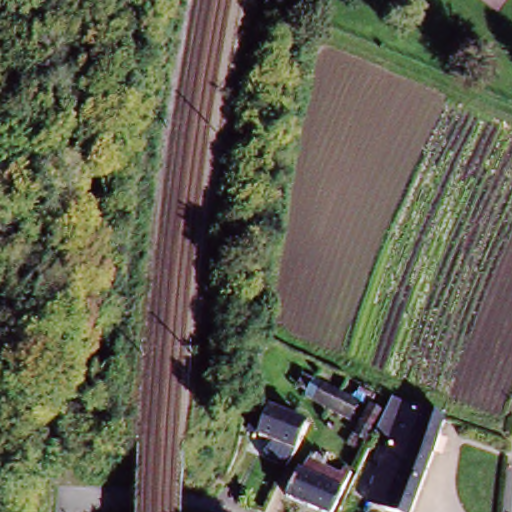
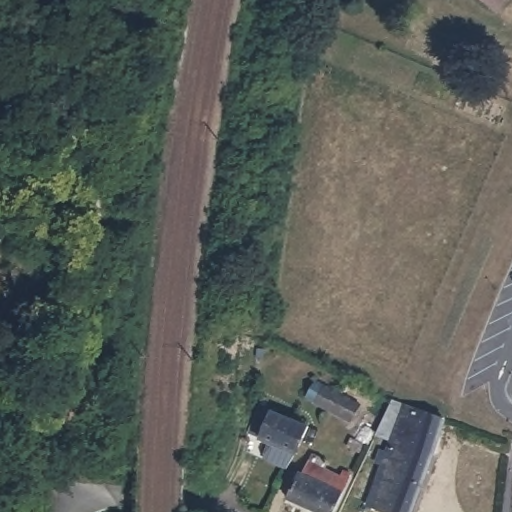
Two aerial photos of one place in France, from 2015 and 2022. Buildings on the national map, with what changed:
unchanged [(332,415),(307,401),(315,385),(340,399),(358,408),(350,425),(332,415)]
unchanged [(413,512),(371,512),(367,510),(390,444),(375,439),(391,405),(402,409),(443,424),(413,512)]
unchanged [(263,443),(257,440),(252,438),(257,425),(262,416),(260,415),(263,408),(275,413),(275,416),(312,431),(300,459),(263,443)]
unchanged [(365,449),(352,441),(369,411),(381,418),(365,449)]
unchanged [(330,512),(304,512),(281,502),(293,478),(298,480),(308,459),(322,466),(318,475),(342,486),(330,512)]

